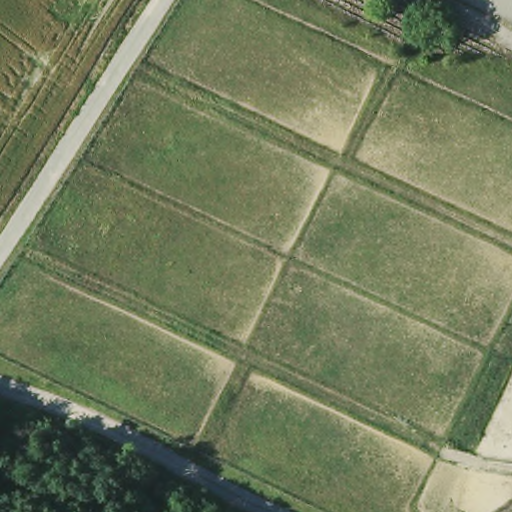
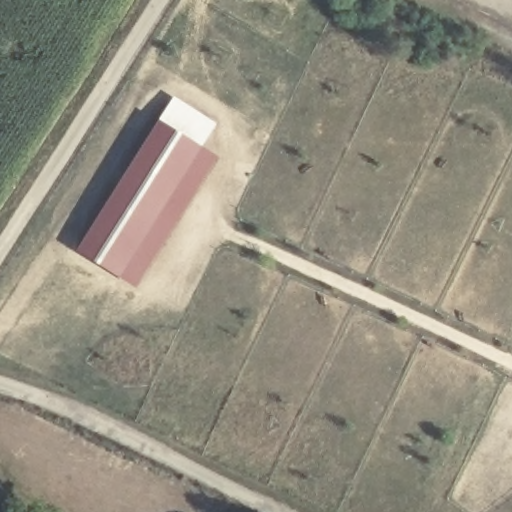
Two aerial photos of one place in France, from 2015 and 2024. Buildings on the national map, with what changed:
new [(136,288),(76,252),(174,97),(217,123),(201,147),(218,157),(136,288)]

